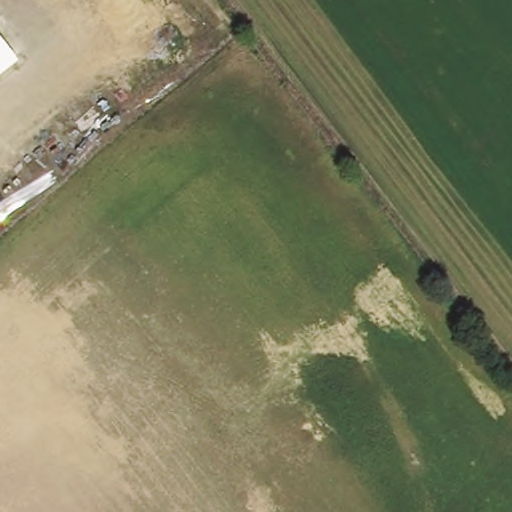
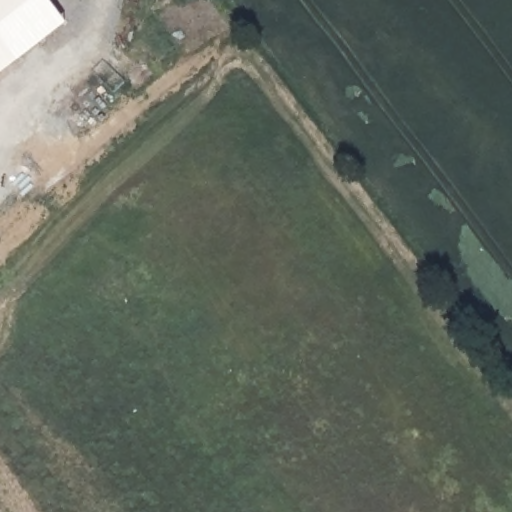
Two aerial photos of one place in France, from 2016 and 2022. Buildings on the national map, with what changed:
new [(0,0),(48,0),(65,22),(19,60),(0,36),(0,0)]
unchanged [(0,36),(19,60),(0,74),(0,36)]

